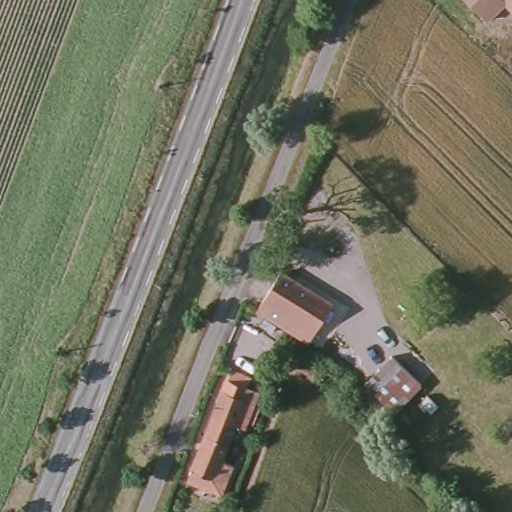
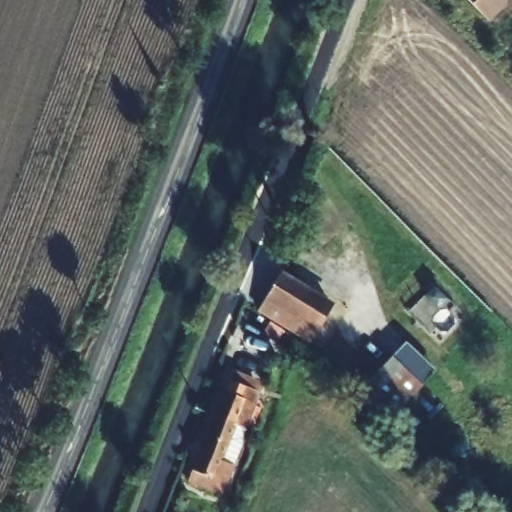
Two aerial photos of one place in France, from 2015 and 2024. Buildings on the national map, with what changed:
unchanged [(512,7),(508,3),(490,21),(470,0),(512,0),(512,7)]
unchanged [(309,338),(261,307),(285,270),(332,301),(309,338)]
unchanged [(392,412),(363,383),(390,357),(419,386),(392,412)]
unchanged [(253,383),(252,392),(260,396),(247,432),(237,428),(222,462),(237,468),(225,499),(187,486),(230,374),(253,383)]

